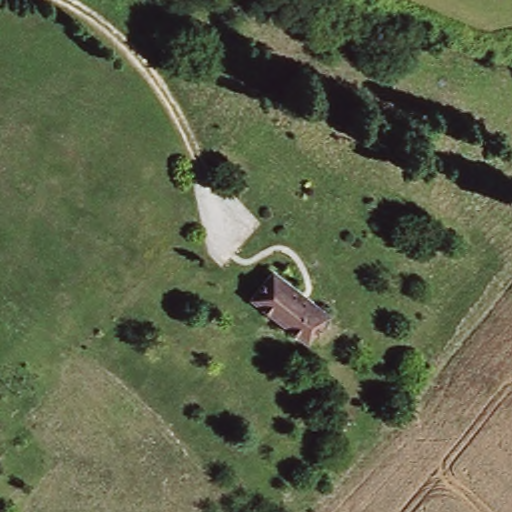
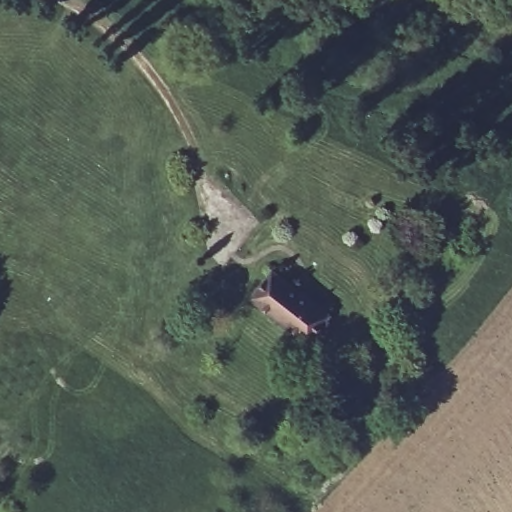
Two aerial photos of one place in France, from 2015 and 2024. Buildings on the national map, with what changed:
unchanged [(332,315),(307,343),(251,293),(275,265),(332,315)]

